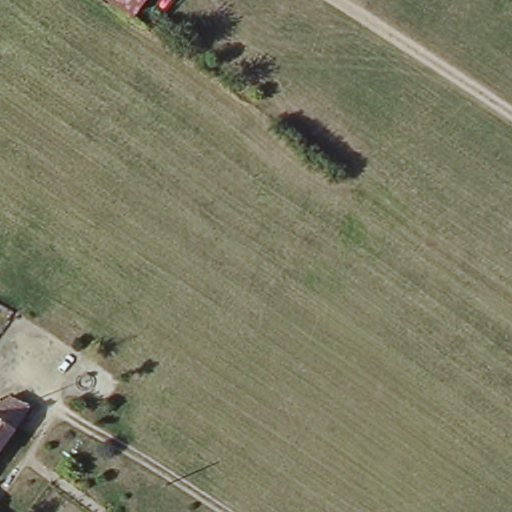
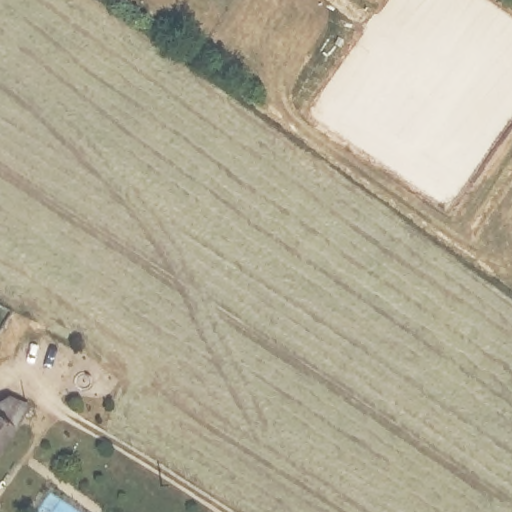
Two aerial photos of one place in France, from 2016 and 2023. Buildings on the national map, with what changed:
unchanged [(26,413),(0,452),(0,402),(1,400),(26,413)]

